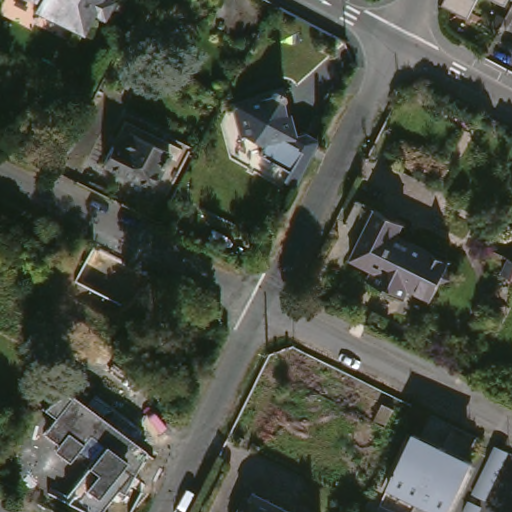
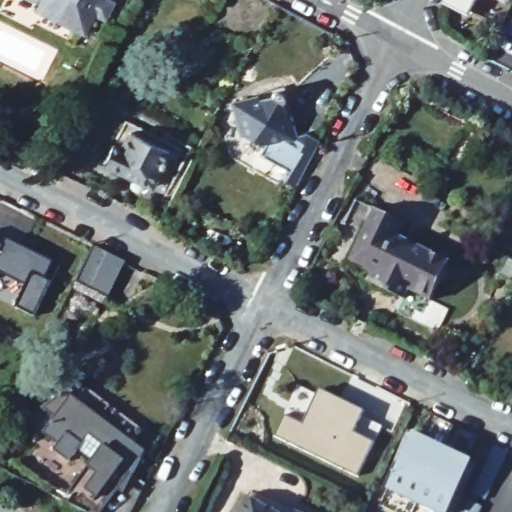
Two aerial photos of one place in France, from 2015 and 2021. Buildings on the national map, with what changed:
unchanged [(101,7),(91,27),(45,5),(47,0),(120,0),(113,14),(101,7)]
unchanged [(458,0),(487,0),(482,12),(458,0)]
unchanged [(291,81),(302,122),(299,127),(314,135),(303,157),(271,141),(275,132),(255,122),(248,92),(291,81)]
unchanged [(165,142),(169,144),(174,137),(177,130),(184,134),(160,184),(145,175),(96,150),(104,134),(113,139),(121,121),(162,141),(157,151),(160,152),(165,142)]
demolished [(228,177),(264,196),(249,225),(213,207),(228,177)]
unchanged [(451,276),(439,297),(418,285),(414,294),(378,276),(383,267),(360,255),(373,230),(352,220),(364,195),(384,205),(413,220),(408,231),(459,258),(457,262),(462,271),(451,276)]
new [(8,240),(56,262),(47,278),(53,282),(34,317),(14,307),(25,286),(0,273),(0,245),(4,247),(8,240)]
unchanged [(109,302),(75,282),(94,245),(131,264),(109,302)]
new [(289,377),(372,420),(346,470),(264,426),(289,377)]
unchanged [(124,492),(120,490),(101,512),(91,512),(66,501),(94,462),(79,450),(70,461),(54,449),(60,442),(44,432),(55,418),(44,408),(64,392),(146,450),(124,492)]
unchanged [(468,467),(445,512),(373,512),(409,438),(468,467)]
unchanged [(486,439),(497,445),(491,455),(473,493),(462,487),(480,450),(486,439)]
unchanged [(262,498),(263,498),(266,492),(307,512),(254,512),(262,498)]

